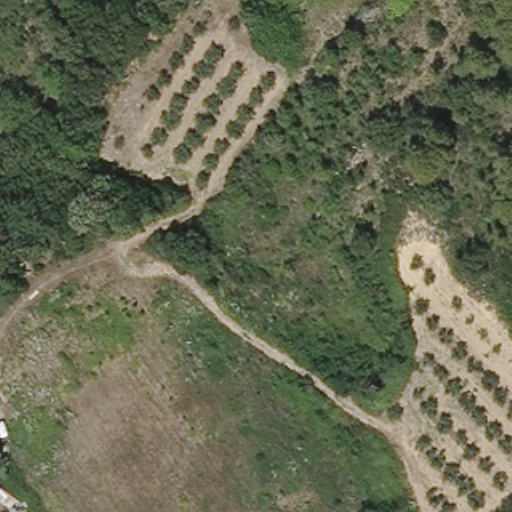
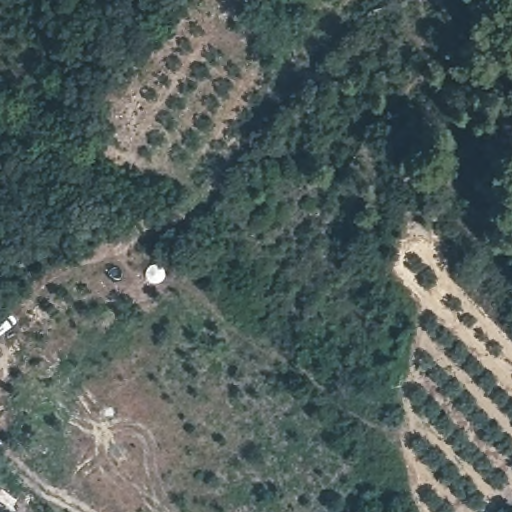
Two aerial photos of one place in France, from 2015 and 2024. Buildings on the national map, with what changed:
[]

